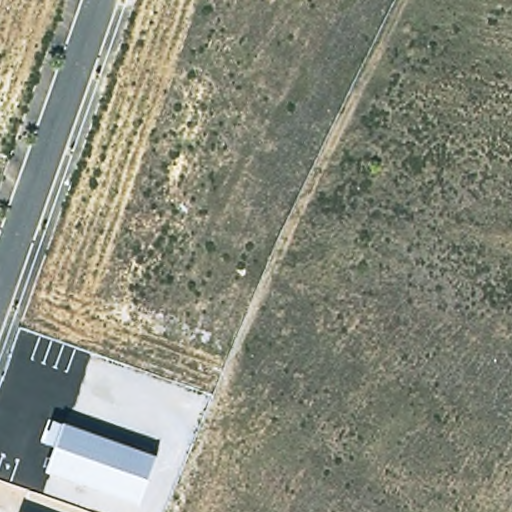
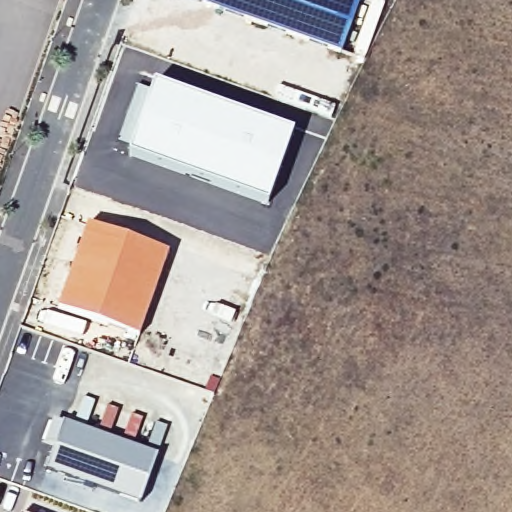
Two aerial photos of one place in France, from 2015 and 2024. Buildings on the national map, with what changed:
new [(340,53),(184,0),(358,0),(340,53)]
new [(292,132),(266,203),(127,154),(153,83),(292,132)]
new [(139,337),(57,309),(86,223),(167,251),(139,337)]
unchanged [(157,456),(139,503),(46,472),(62,422),(157,456)]

